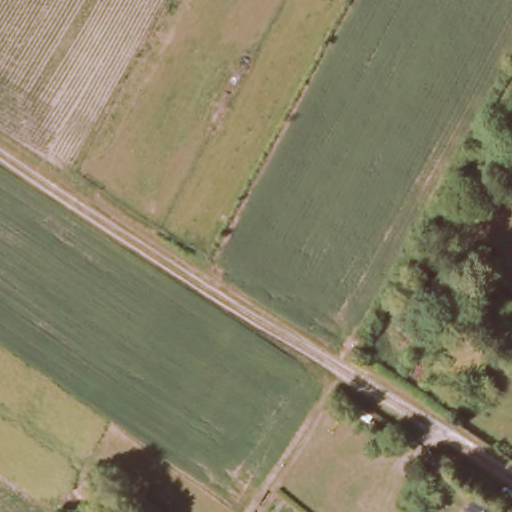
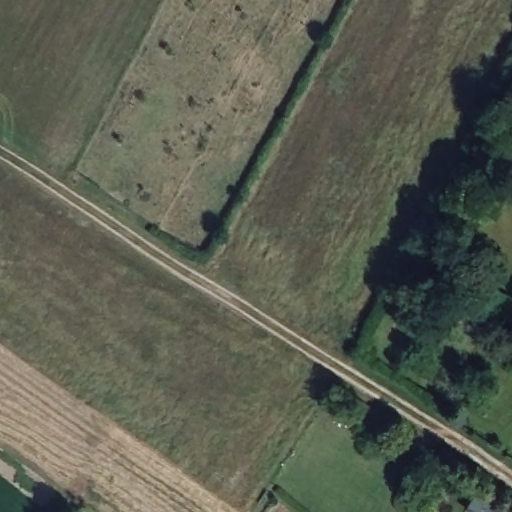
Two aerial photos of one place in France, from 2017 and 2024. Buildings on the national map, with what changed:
unchanged [(480,501),(497,512),(472,512),(480,501)]

